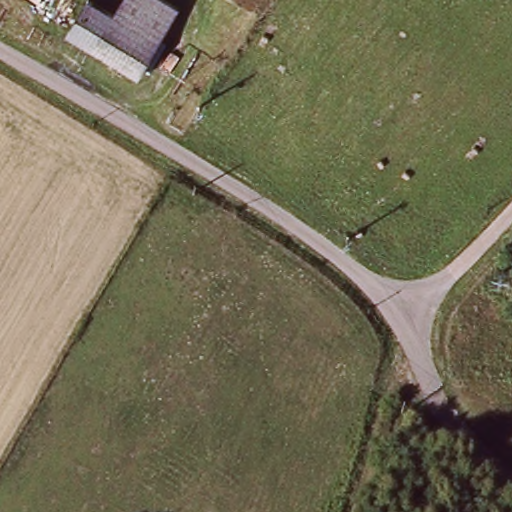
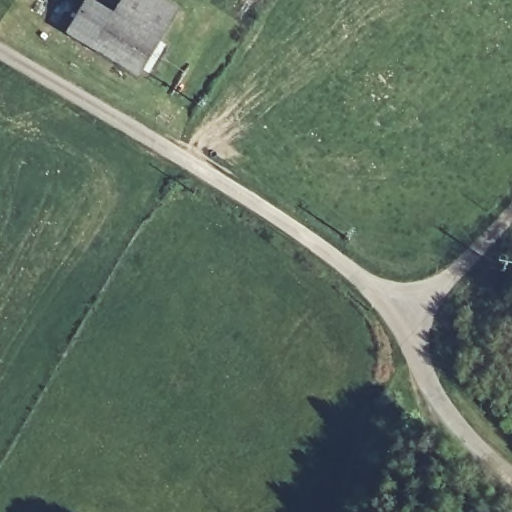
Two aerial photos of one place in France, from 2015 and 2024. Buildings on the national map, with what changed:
unchanged [(61,36),(85,1),(104,12),(110,4),(117,10),(124,0),(157,0),(176,14),(160,39),(132,82),(80,47),(61,36)]

